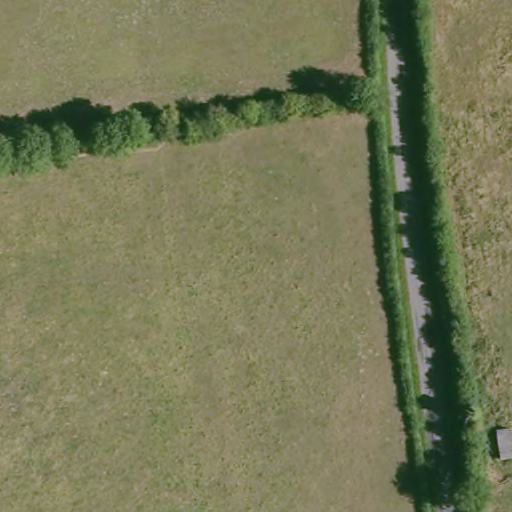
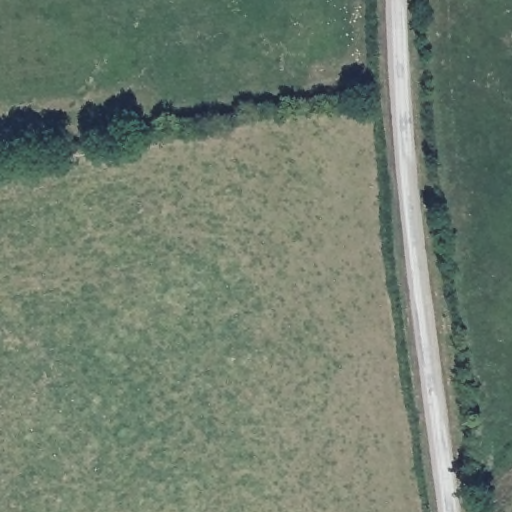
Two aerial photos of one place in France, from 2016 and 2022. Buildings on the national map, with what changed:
unchanged [(499,460),(495,432),(510,429),(512,444),(512,459),(499,460)]

